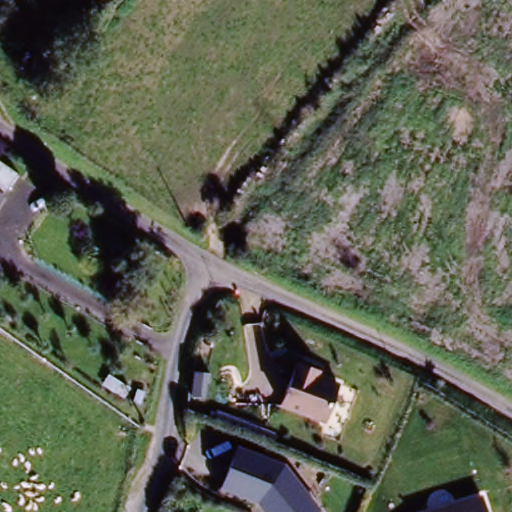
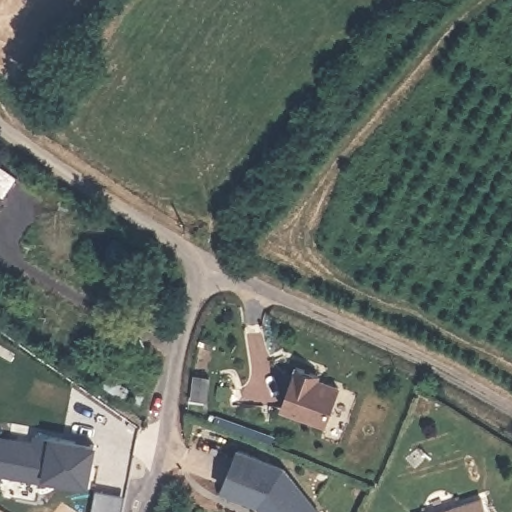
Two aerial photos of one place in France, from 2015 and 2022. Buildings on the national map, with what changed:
demolished [(56,223),(71,202),(115,230),(98,251),(56,223)]
unchanged [(316,383),(335,391),(320,426),(278,409),(296,368),(318,378),(316,383)]
new [(38,481),(0,474),(0,456),(4,440),(29,445),(32,433),(93,445),(82,483),(81,490),(38,481)]
unchanged [(292,472),(320,512),(268,512),(264,506),(226,487),(245,450),(292,472)]
unchanged [(487,512),(431,512),(482,496),(487,512)]

